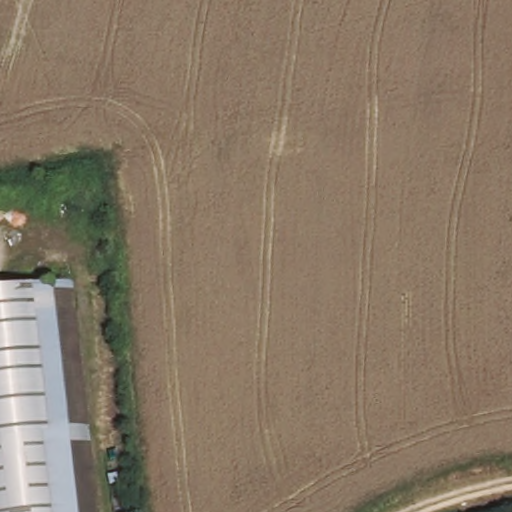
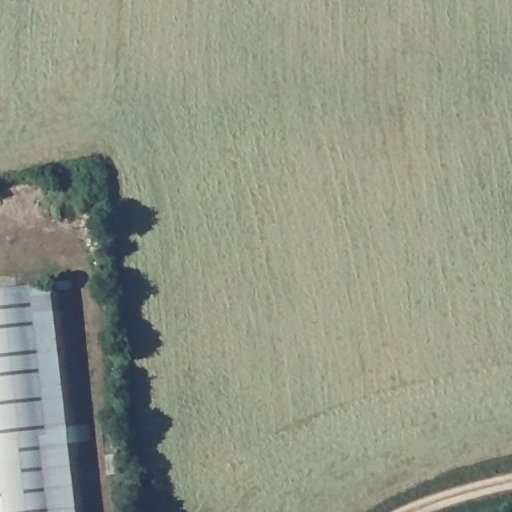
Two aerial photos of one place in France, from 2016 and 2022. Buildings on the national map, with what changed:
unchanged [(99,512),(0,512),(0,293),(69,284),(99,512)]

